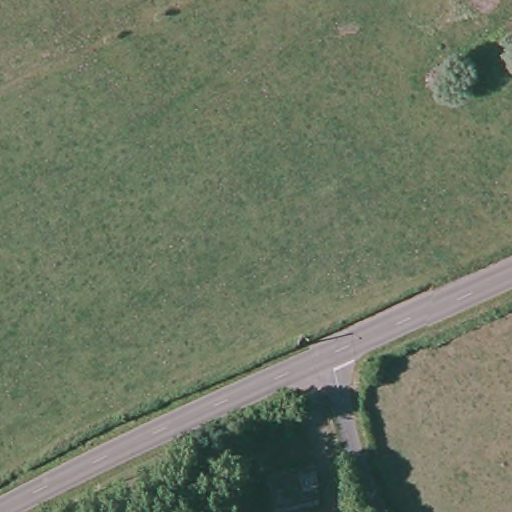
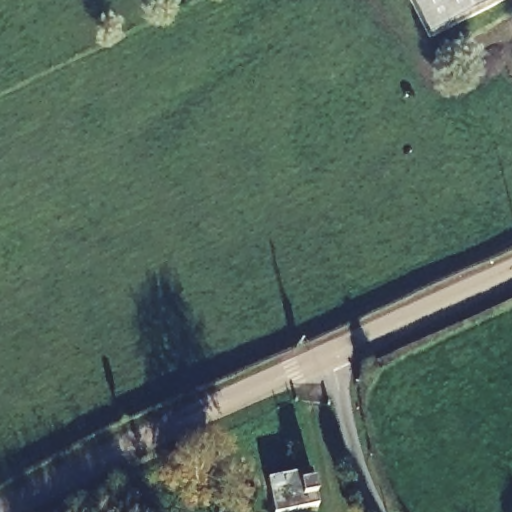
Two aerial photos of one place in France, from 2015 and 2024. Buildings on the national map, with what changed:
new [(498,0),(429,35),(412,0),(498,0)]
unchanged [(287,512),(273,512),(267,480),(311,470),(317,505),(287,512)]

